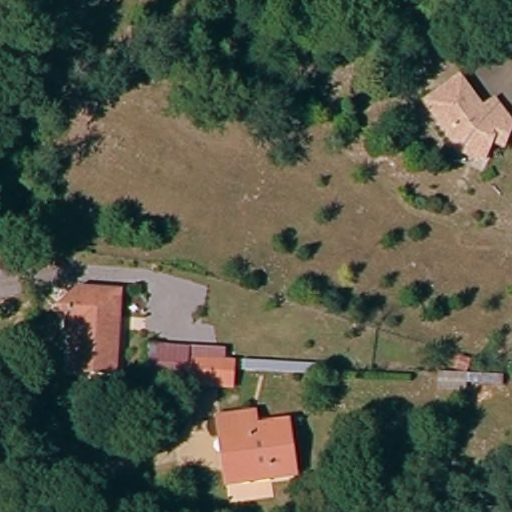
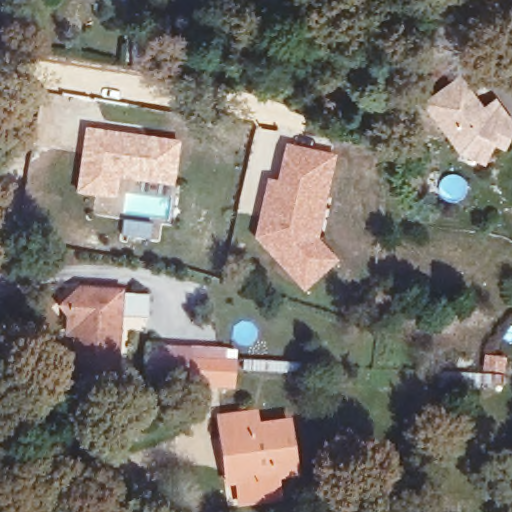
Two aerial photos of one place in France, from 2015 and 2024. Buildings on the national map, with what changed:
unchanged [(512,123),(504,140),(492,135),(483,156),(460,146),(425,99),(459,74),(482,105),(494,97),(512,121),(512,123)]
new [(180,141),(175,185),(119,178),(116,199),(76,194),(85,128),(180,141)]
new [(266,178),(275,180),(284,143),(336,154),(318,238),(340,260),(303,293),(251,239),(266,178)]
unchanged [(84,287),(125,289),(120,369),(80,366),(81,330),(71,329),(73,311),(74,296),(84,287)]
unchanged [(184,379),(145,377),(146,349),(175,351),(185,351),(184,379)]
unchanged [(185,351),(227,353),(230,353),(229,381),(184,379),(185,351)]
unchanged [(220,413),(232,412),(249,410),(250,423),(290,419),(296,474),(239,480),(227,481),(220,413)]

